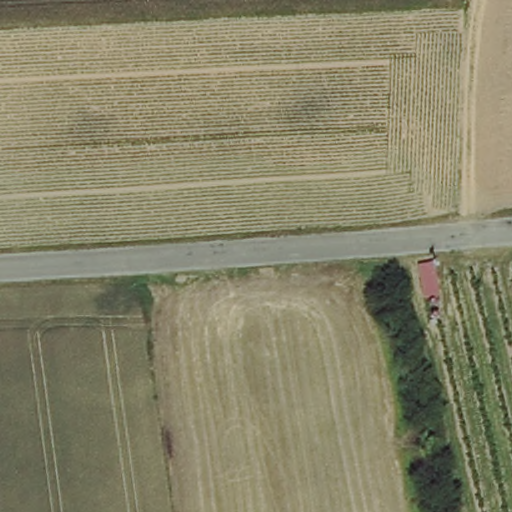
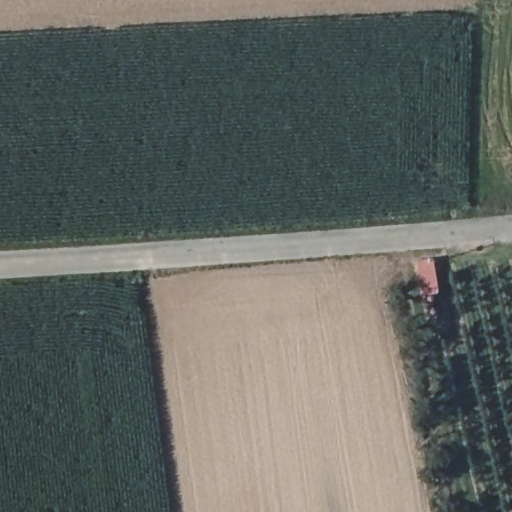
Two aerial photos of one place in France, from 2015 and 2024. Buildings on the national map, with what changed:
unchanged [(444,293),(428,295),(420,261),(436,258),(444,293)]

